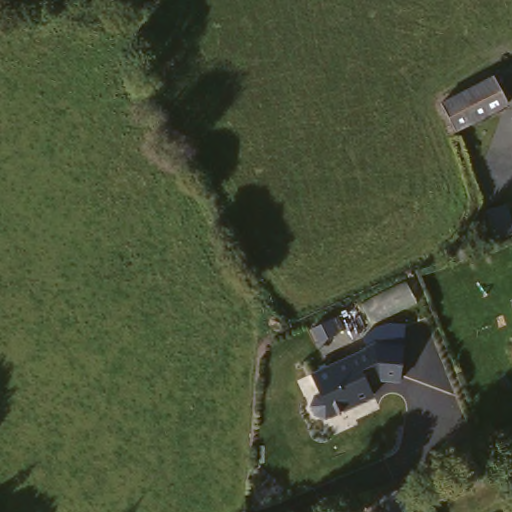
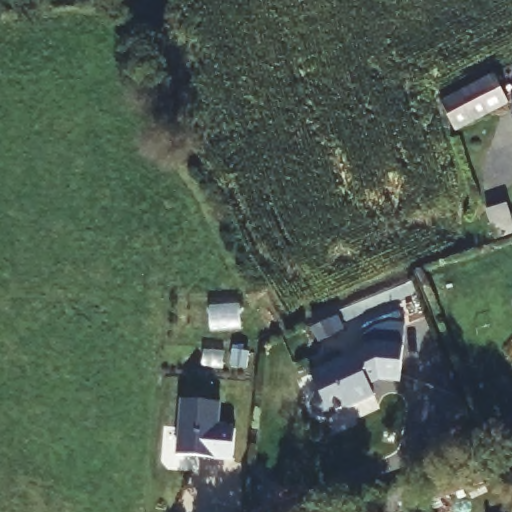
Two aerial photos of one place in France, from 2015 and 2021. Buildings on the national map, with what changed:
unchanged [(502,106),(451,134),(436,108),(488,81),(502,106)]
unchanged [(507,123),(512,120),(512,131),(507,123)]
unchanged [(510,234),(491,242),(479,215),(497,208),(510,234)]
unchanged [(399,383),(377,380),(368,384),(373,398),(321,419),(309,414),(314,394),(304,374),(373,341),(403,347),(399,383)]
new [(236,459),(176,455),(179,399),(221,403),(220,426),(236,428),(236,459)]
unchanged [(474,498),(435,512),(419,512),(417,506),(469,487),(474,498)]
unchanged [(404,512),(387,512),(401,507),(404,512)]

